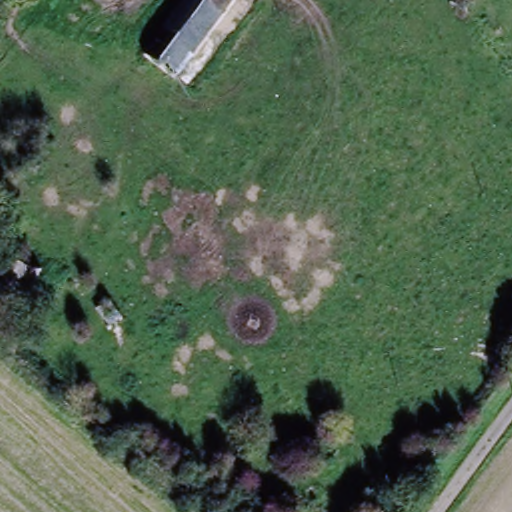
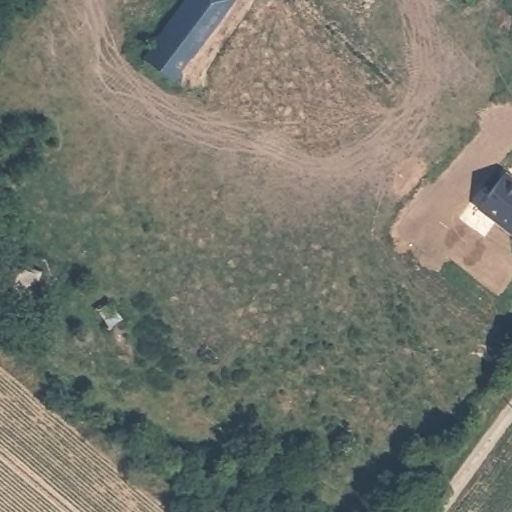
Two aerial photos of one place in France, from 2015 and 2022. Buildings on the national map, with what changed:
unchanged [(186,0),(237,0),(193,56),(162,31),(186,0)]
unchanged [(193,56),(176,77),(145,52),(162,31),(193,56)]
new [(512,182),(512,233),(478,210),(506,177),(512,182)]
unchanged [(41,295),(25,295),(18,317),(0,313),(0,263),(1,262),(43,271),(41,295)]

